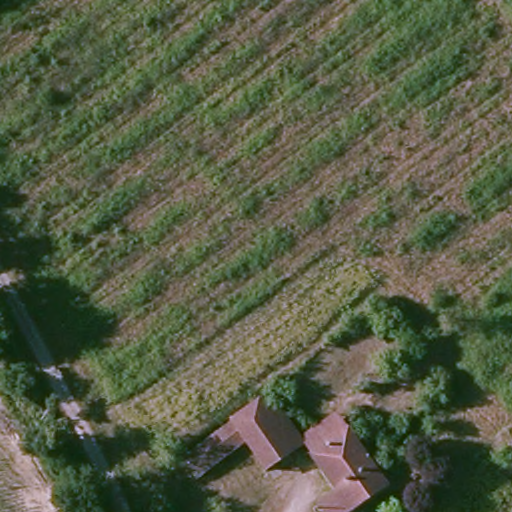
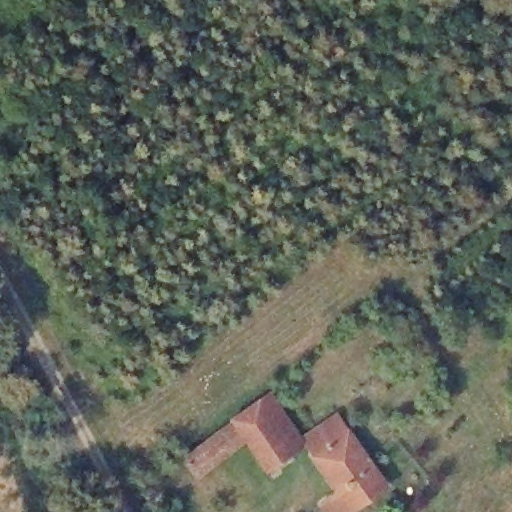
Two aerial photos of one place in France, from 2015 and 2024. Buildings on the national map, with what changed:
unchanged [(271,389),(305,434),(334,412),(348,430),(312,458),(303,447),(271,469),(247,442),(198,477),(181,453),(271,389)]
unchanged [(312,458),(348,430),(392,485),(359,512),(333,512),(331,510),(343,499),(312,458)]

